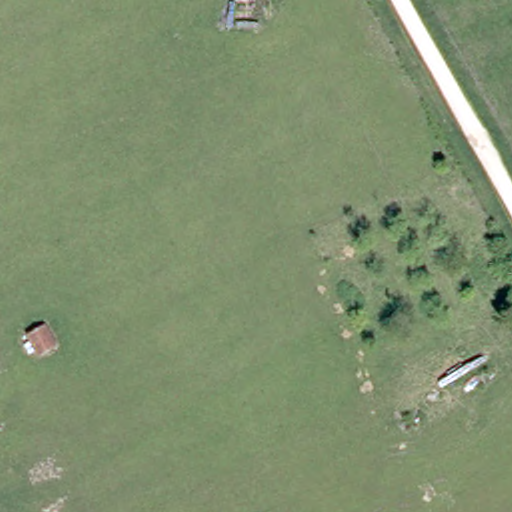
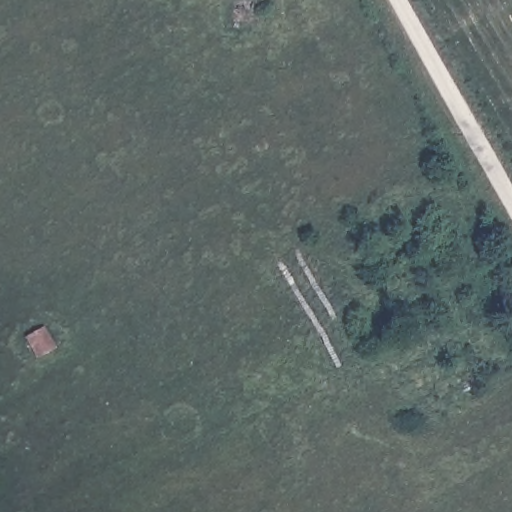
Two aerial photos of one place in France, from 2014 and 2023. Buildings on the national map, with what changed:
unchanged [(54,347),(37,356),(27,334),(43,327),(54,347)]

